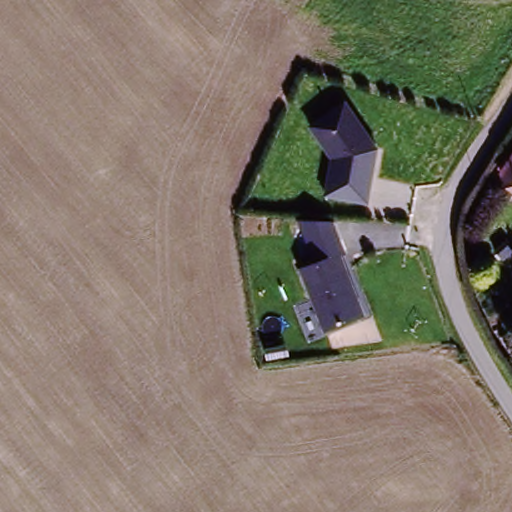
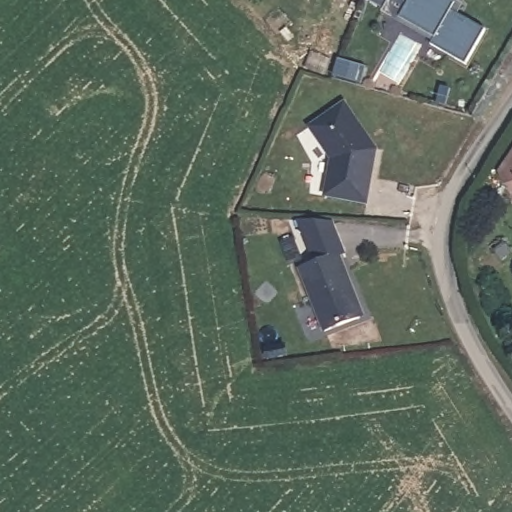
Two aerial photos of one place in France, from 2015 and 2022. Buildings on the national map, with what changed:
new [(460,17),(494,38),(472,73),(437,51),(441,45),(405,24),(390,14),(398,0),(399,0),(447,0),(464,10),(460,17)]
unchanged [(323,189),(325,153),(303,119),(334,93),(377,146),(366,198),(323,189)]
unchanged [(511,185),(512,183),(512,186),(511,185)]
unchanged [(361,314),(327,329),(300,269),(337,253),(352,284),(349,287),(361,314)]

